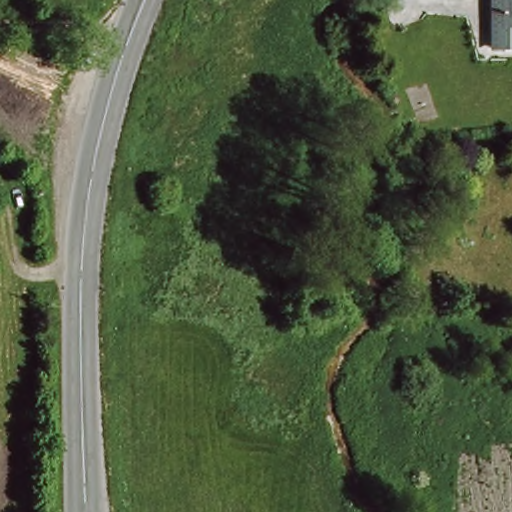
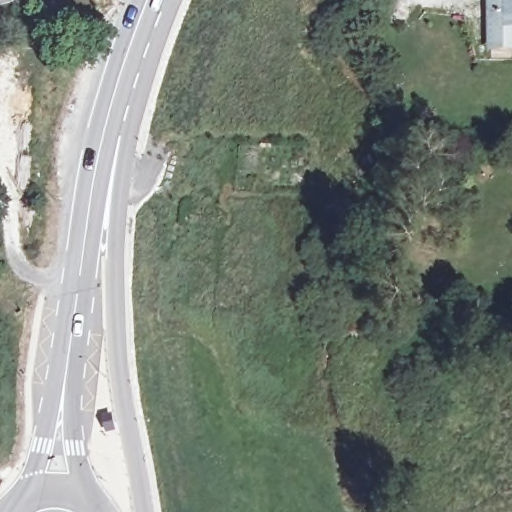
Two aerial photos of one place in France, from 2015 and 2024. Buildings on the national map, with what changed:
unchanged [(491,30),(491,0),(512,0),(512,45),(491,46),(491,30)]

